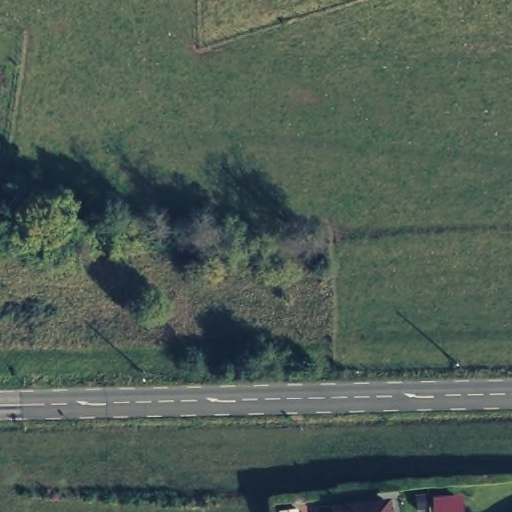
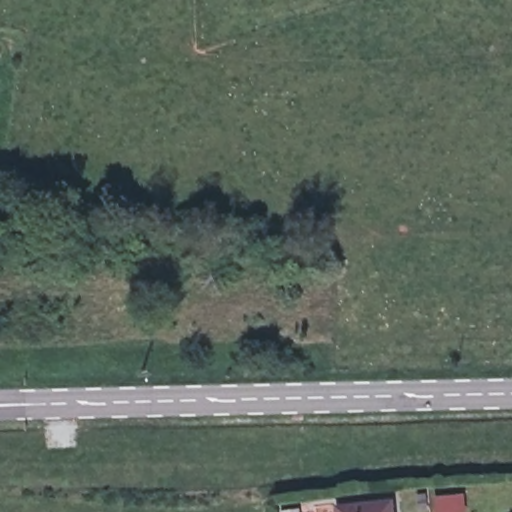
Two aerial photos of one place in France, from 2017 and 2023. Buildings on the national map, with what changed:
unchanged [(422,485),(440,483),(441,498),(423,500),(422,485)]
unchanged [(389,503),(389,512),(339,512),(339,507),(389,503)]
unchanged [(297,508),(297,512),(282,512),(282,509),(297,508)]

